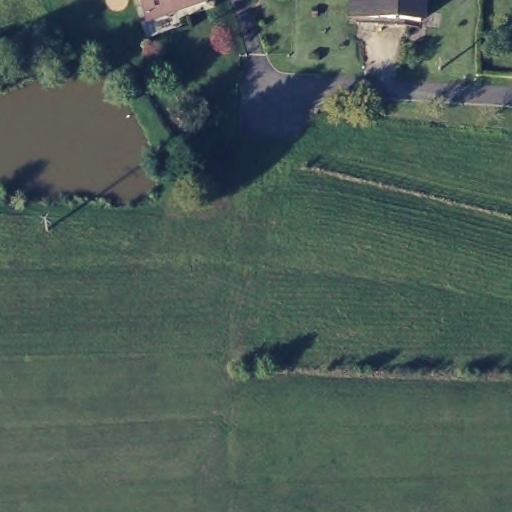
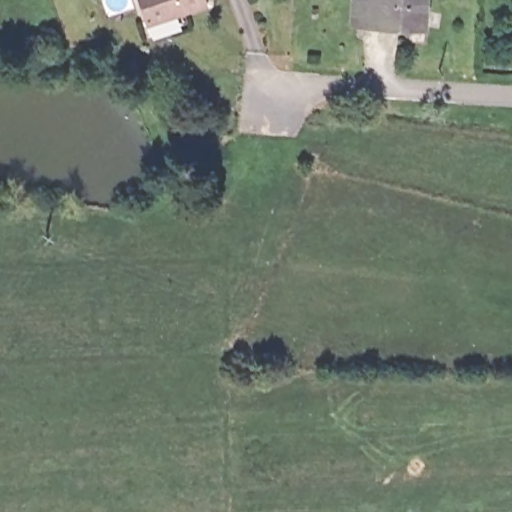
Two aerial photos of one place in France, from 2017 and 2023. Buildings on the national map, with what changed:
unchanged [(143,0),(186,0),(178,2),(177,1),(147,12),(143,0)]
unchanged [(358,9),(356,9),(356,0),(422,0),(421,12),(397,11),(397,17),(358,15),(358,9)]

